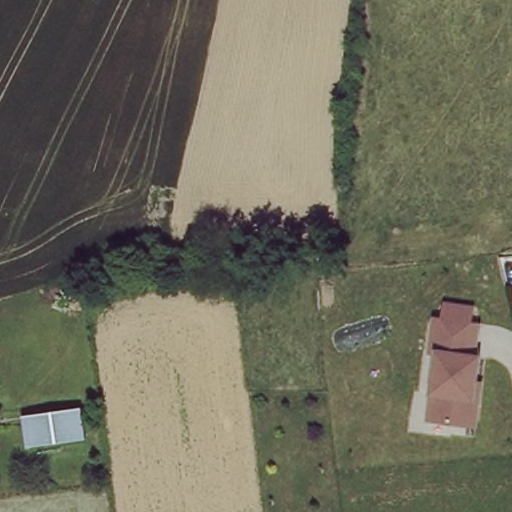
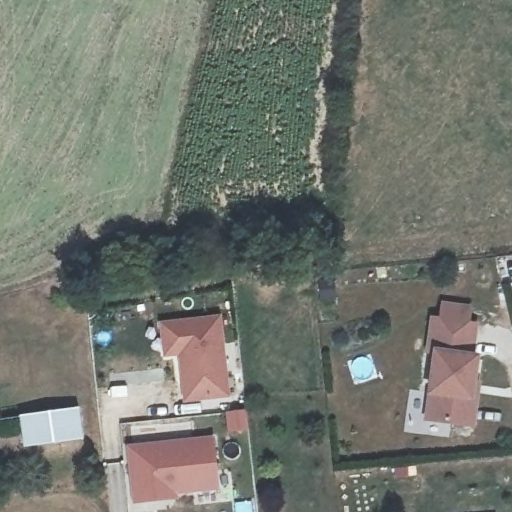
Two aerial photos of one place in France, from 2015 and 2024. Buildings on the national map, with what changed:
unchanged [(469,319),(477,321),(471,356),(482,356),(472,424),(418,418),(428,315),(437,316),(439,300),(470,305),(469,319)]
new [(221,314),(229,397),(184,402),(179,355),(163,357),(160,322),(221,314)]
unchanged [(80,408),(83,437),(24,442),(21,413),(80,408)]
new [(216,436),(219,490),(176,495),(176,502),(134,505),(130,443),(216,436)]

